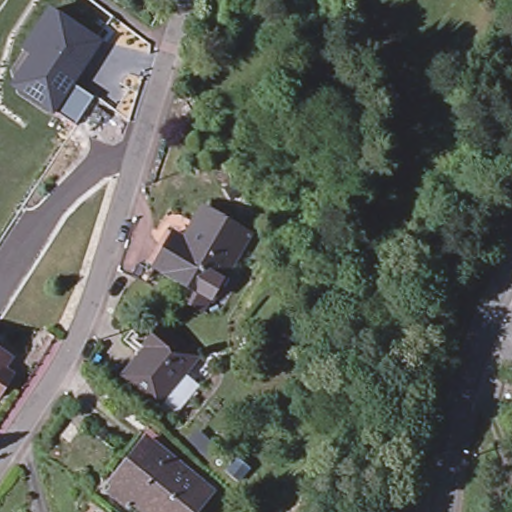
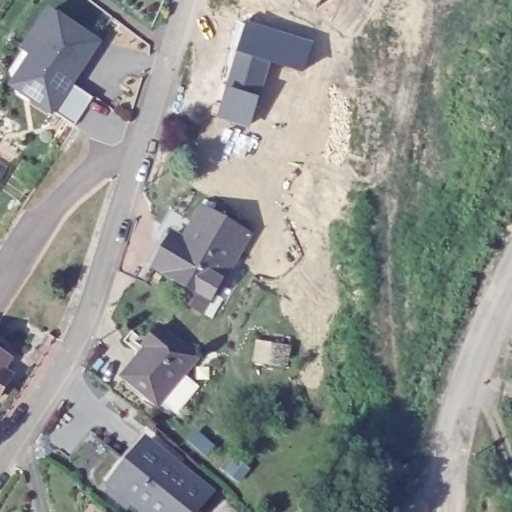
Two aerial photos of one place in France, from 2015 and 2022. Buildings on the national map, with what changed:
new [(317,7),(308,0),(322,0),(317,7)]
unchanged [(31,60),(22,52),(51,10),(100,42),(72,84),(90,98),(75,126),(56,112),(53,115),(12,89),(31,60)]
new [(245,21),(315,42),(305,74),(271,63),(251,130),(217,117),(245,21)]
unchanged [(147,266),(165,232),(173,236),(182,221),(193,227),(202,211),(248,237),(214,296),(211,301),(192,291),(155,270),(147,266)]
unchanged [(121,376),(157,323),(200,355),(156,405),(121,376)]
unchanged [(0,390),(0,351),(8,357),(1,368),(10,373),(5,382),(0,390)]
unchanged [(136,512),(130,507),(136,498),(115,482),(145,445),(206,495),(193,512),(136,512)]

